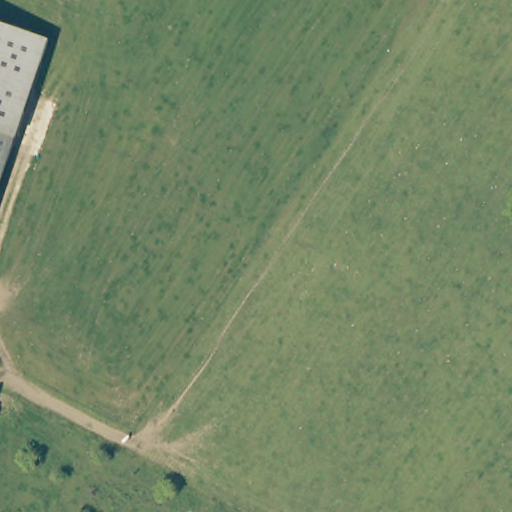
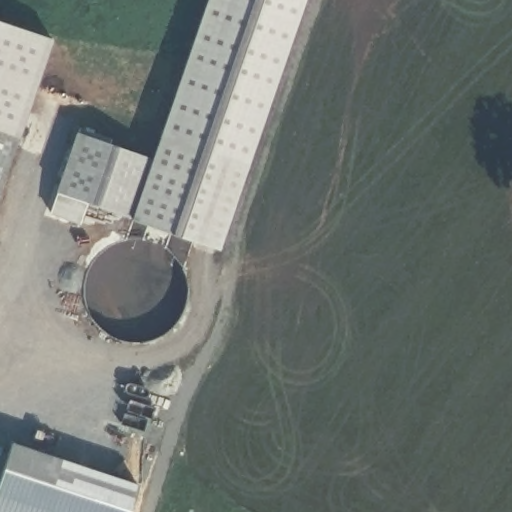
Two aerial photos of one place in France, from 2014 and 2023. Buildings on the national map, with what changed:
new [(57,191),(77,132),(151,159),(205,0),(305,0),(218,248),(57,191)]
unchanged [(0,130),(0,23),(48,39),(15,135),(9,133),(0,130)]
unchanged [(15,135),(0,179),(0,130),(15,135)]

